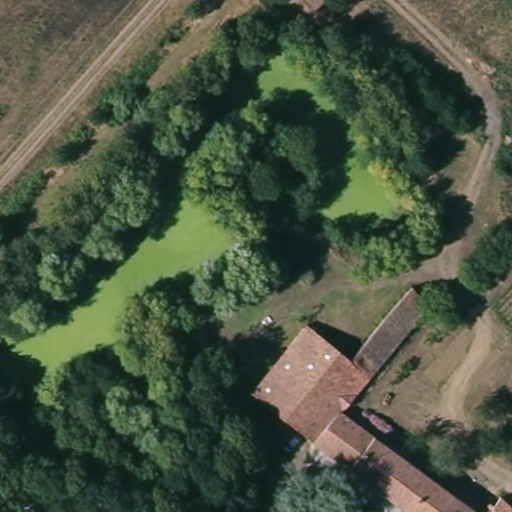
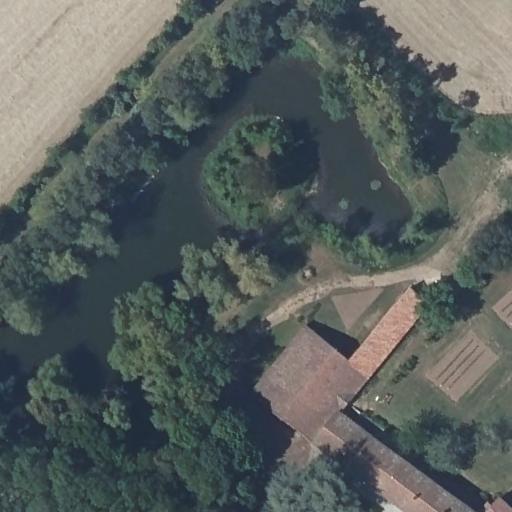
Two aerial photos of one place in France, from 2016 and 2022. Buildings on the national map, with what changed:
unchanged [(350,359),(415,280),(437,297),(403,338),(397,344),(351,400),(342,411),(318,444),(253,392),(307,325),(350,359)]
unchanged [(480,512),(410,512),(324,449),(318,444),(342,411),(480,512)]
unchanged [(496,502),(502,494),(512,502),(512,512),(487,512),(493,504),(496,502)]

